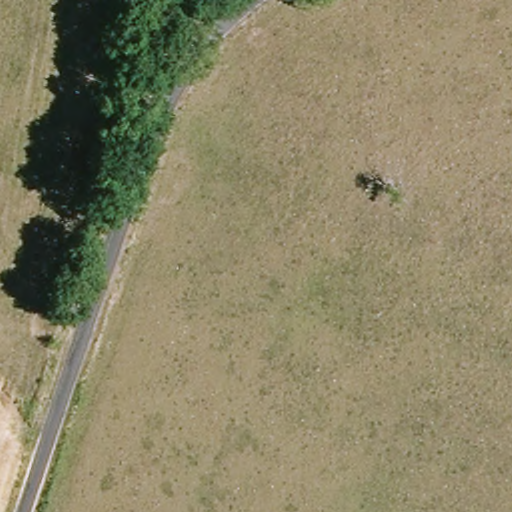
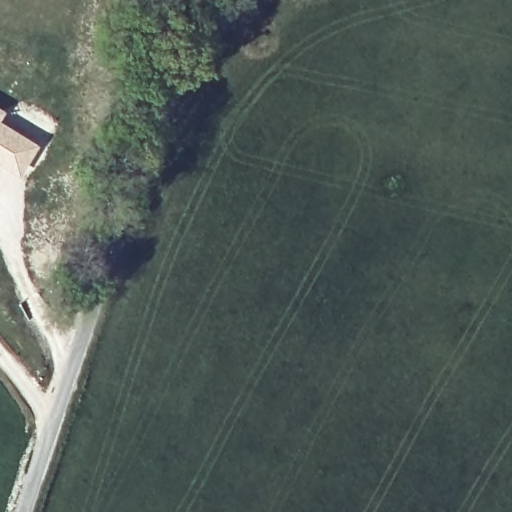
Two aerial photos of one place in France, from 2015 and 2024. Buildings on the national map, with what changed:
new [(0,106),(7,111),(1,119),(43,144),(22,174),(0,161),(0,106)]

